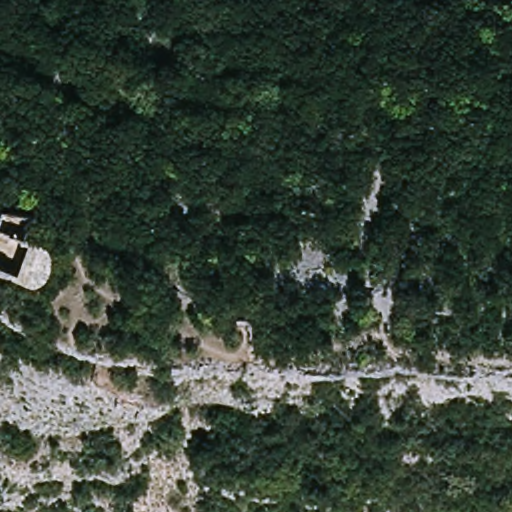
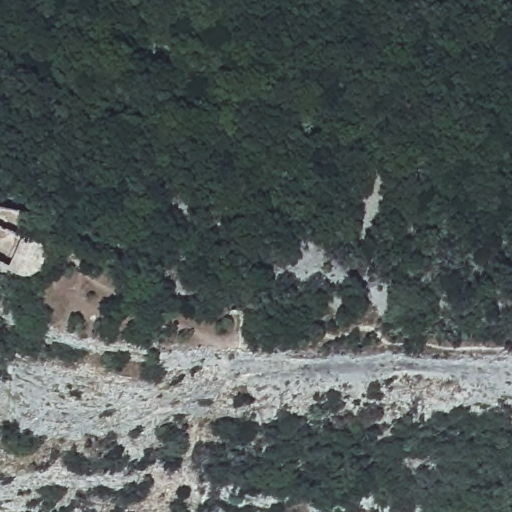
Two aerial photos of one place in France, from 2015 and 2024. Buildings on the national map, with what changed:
unchanged [(42,252),(47,259),(36,279),(27,282),(11,275),(23,241),(42,252)]

